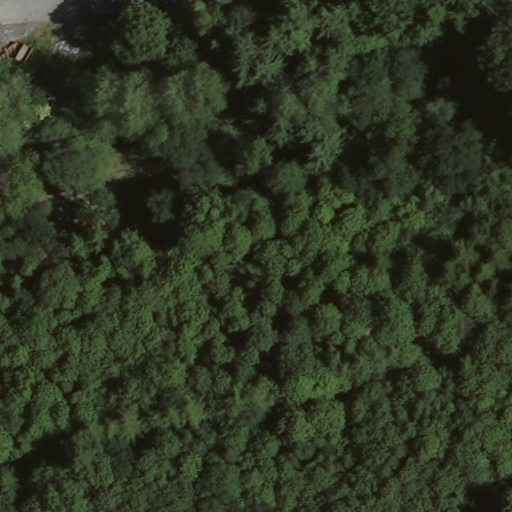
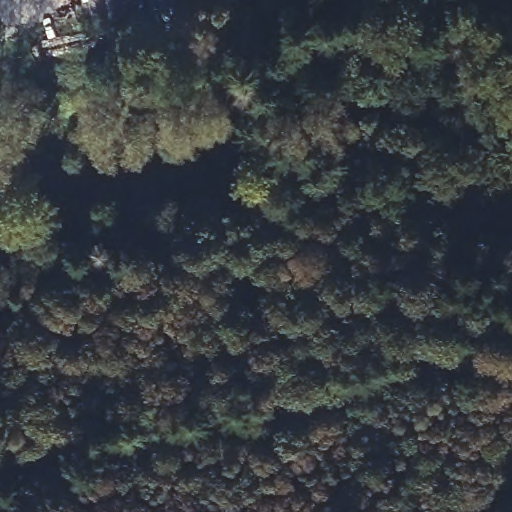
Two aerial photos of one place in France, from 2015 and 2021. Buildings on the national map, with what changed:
unchanged [(130,0),(130,16),(86,17),(86,0),(130,0)]

